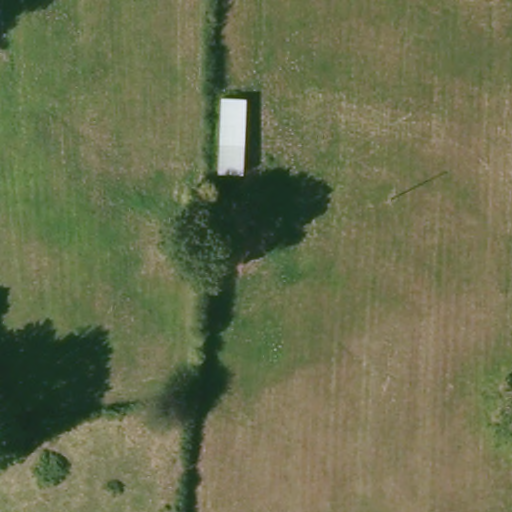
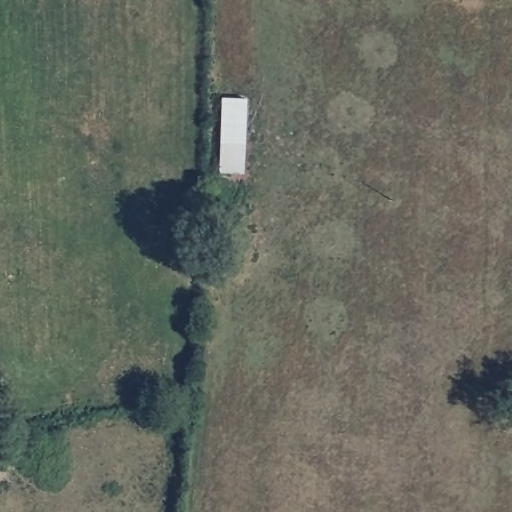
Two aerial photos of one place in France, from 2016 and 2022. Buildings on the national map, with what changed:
unchanged [(226,92),(251,93),(248,182),(223,181),(226,92)]

